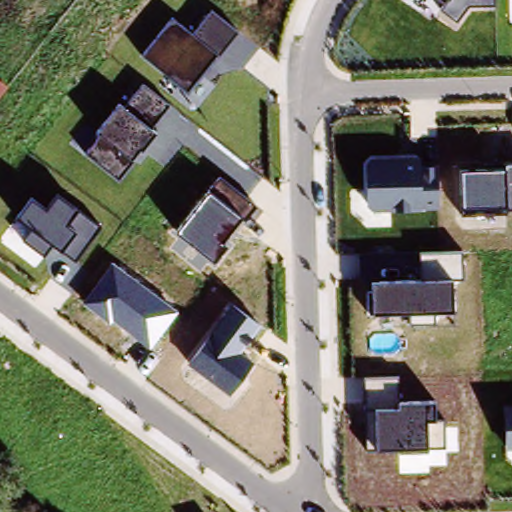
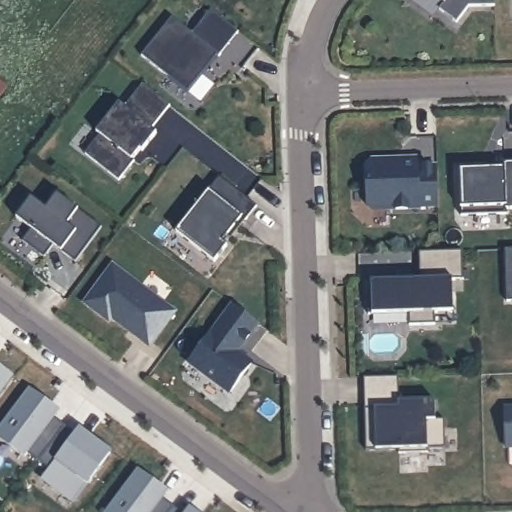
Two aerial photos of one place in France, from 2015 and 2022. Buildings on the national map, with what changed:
unchanged [(492,5),(468,6),(458,21),(438,9),(442,4),(437,0),(492,0),(492,5)]
unchanged [(238,31),(189,94),(142,55),(172,17),(194,34),(211,11),(238,31)]
unchanged [(172,105),(118,178),(88,153),(103,134),(98,131),(119,103),(125,109),(142,84),(172,105)]
unchanged [(3,92),(0,96),(0,90),(3,92)]
unchanged [(422,156),(421,163),(438,164),(438,207),(374,208),(367,202),(366,158),(422,156)]
unchanged [(503,164),(512,164),(512,209),(463,211),(462,172),(502,170),(503,164)]
unchanged [(256,204),(245,220),(241,217),(222,241),(228,246),(215,262),(177,233),(220,177),(256,204)]
unchanged [(49,208),(60,194),(100,225),(76,260),(53,242),(43,255),(25,240),(32,229),(17,217),(33,198),(49,208)]
new [(506,254),(505,246),(512,246),(512,298),(507,298),(506,254)]
unchanged [(420,281),(420,254),(461,253),(462,279),(450,278),(451,311),(436,311),(435,323),(410,322),(410,311),(371,310),(372,280),(420,281)]
unchanged [(150,346),(113,317),(110,323),(85,302),(114,264),(178,310),(150,346)]
unchanged [(258,325),(241,351),(253,361),(228,394),(188,362),(231,304),(258,325)]
new [(13,373),(0,392),(0,364),(13,373)]
unchanged [(398,379),(400,400),(435,400),(436,419),(443,421),(443,447),(426,448),(376,449),(365,446),(364,379),(398,379)]
new [(45,398),(59,409),(55,415),(66,423),(77,431),(81,425),(95,435),(112,448),(73,500),(43,477),(50,468),(27,451),(20,460),(0,446),(0,426),(29,386),(45,398)]
unchanged [(512,447),(504,447),(506,403),(512,403),(512,447)]
new [(105,512),(138,468),(154,480),(150,486),(185,512),(105,512)]
new [(154,480),(167,490),(163,496),(150,486),(154,480)]
new [(197,512),(186,512),(190,507),(197,512)]

